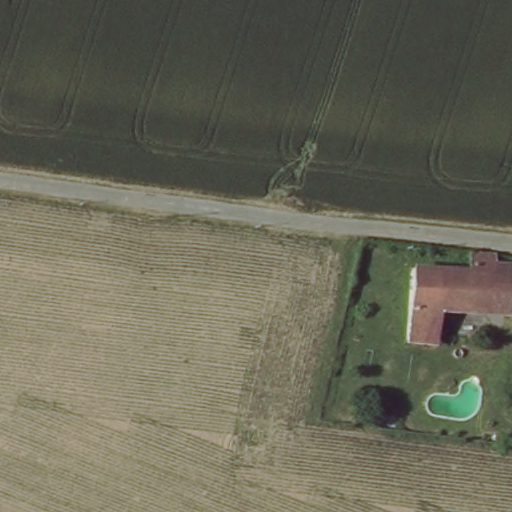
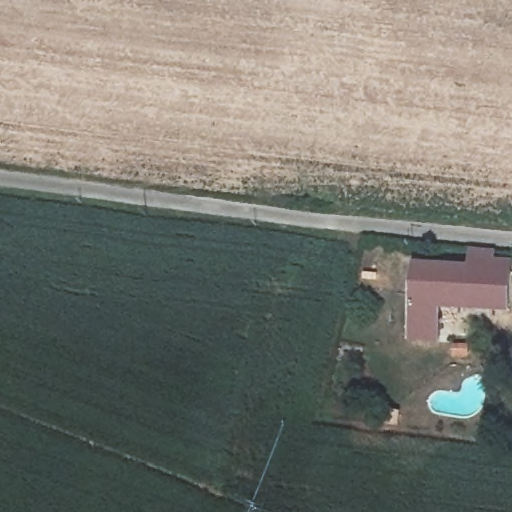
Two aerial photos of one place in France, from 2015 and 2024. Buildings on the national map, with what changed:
unchanged [(500,256),(497,275),(512,276),(512,291),(510,311),(443,308),(438,341),(410,338),(417,268),(470,272),(471,251),(500,256)]

